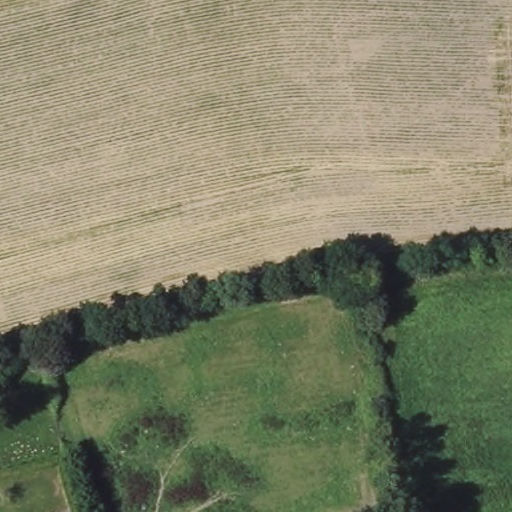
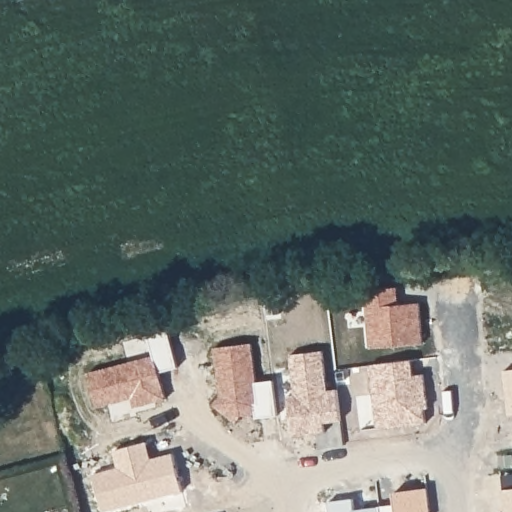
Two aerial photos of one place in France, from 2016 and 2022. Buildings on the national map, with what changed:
new [(395,286),(396,304),(417,303),(421,344),(367,348),(362,290),(395,286)]
new [(86,375),(152,357),(146,337),(166,332),(176,369),(157,374),(164,401),(132,409),(130,400),(95,410),(86,375)]
new [(255,419),(254,415),(240,417),(234,424),(212,406),(219,397),(213,349),(250,345),(255,383),(272,381),(276,417),(255,419)]
new [(339,421),(322,423),(323,429),(313,431),(313,435),(291,437),(286,396),(293,396),(288,356),(321,352),(326,391),(335,390),(339,421)]
new [(368,366),(410,360),(412,375),(422,374),(425,401),(422,401),(425,423),(376,429),(368,366)]
new [(512,369),(512,414),(508,414),(502,370),(512,369)]
new [(422,401),(425,401),(425,400),(426,400),(428,408),(423,409),(422,401)]
new [(118,469),(113,452),(145,444),(150,461),(163,457),(171,455),(172,458),(181,493),(108,512),(104,512),(93,476),(118,469)]
new [(508,506),(504,507),(502,490),(512,488),(512,512),(509,512),(508,506)]
new [(378,507),(395,505),(393,493),(426,489),(430,512),(379,512),(378,507)]
new [(352,499),(354,512),(329,512),(327,503),(352,499)]
new [(504,507),(508,506),(509,512),(505,512),(504,507)]
new [(354,510),(360,510),(378,507),(379,512),(354,512),(354,510)]

